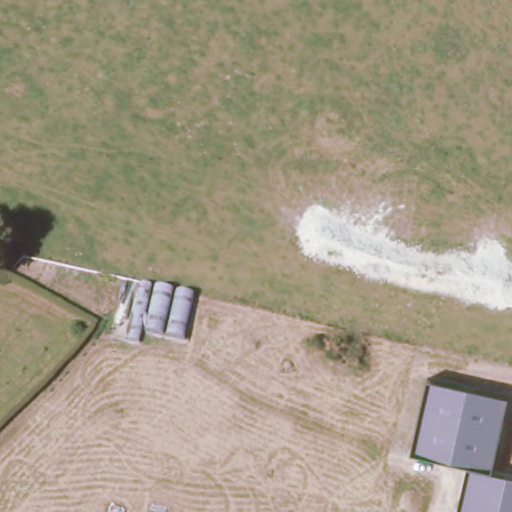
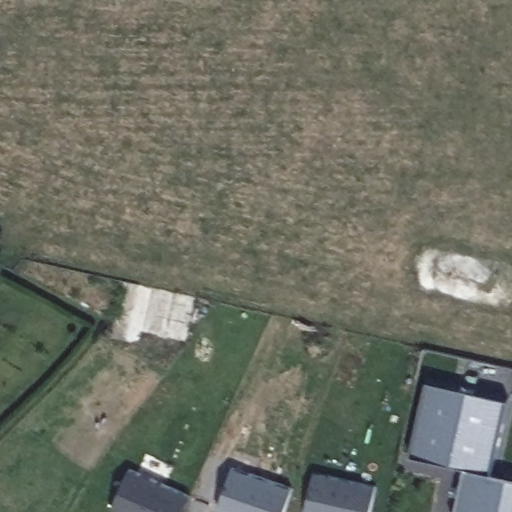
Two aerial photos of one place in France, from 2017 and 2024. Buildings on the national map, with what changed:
unchanged [(125,328),(135,286),(169,294),(158,340),(125,328)]
unchanged [(169,294),(191,299),(182,346),(158,340),(169,294)]
unchanged [(143,337),(142,341),(130,339),(132,332),(143,337)]
unchanged [(509,398),(491,473),(512,477),(512,512),(456,512),(467,467),(410,454),(427,380),(509,398)]
new [(284,512),(230,512),(217,508),(233,466),(292,487),(284,512)]
new [(132,468),(193,496),(186,512),(125,512),(115,507),(132,468)]
new [(314,473),(376,487),(371,512),(305,512),(314,473)]

